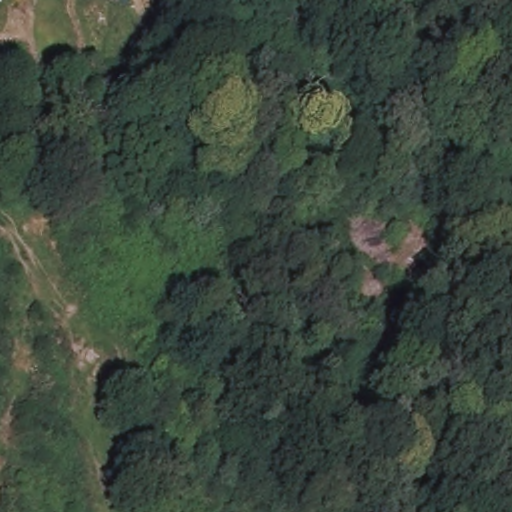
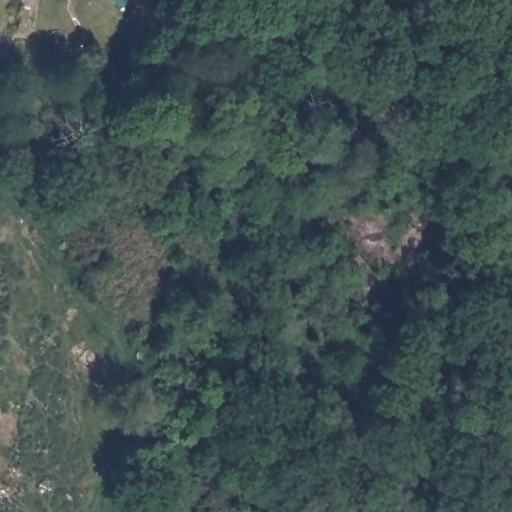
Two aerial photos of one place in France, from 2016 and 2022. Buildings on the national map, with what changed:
[]

